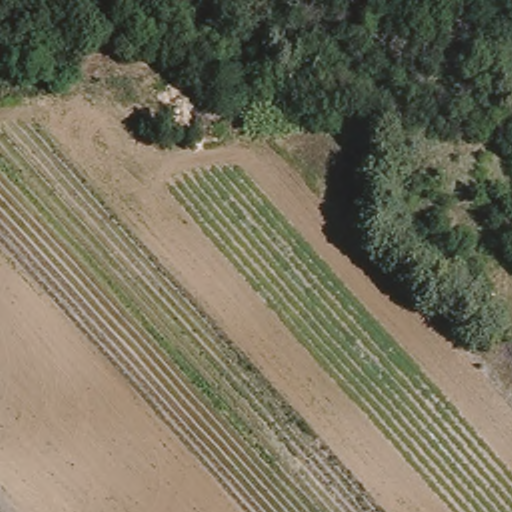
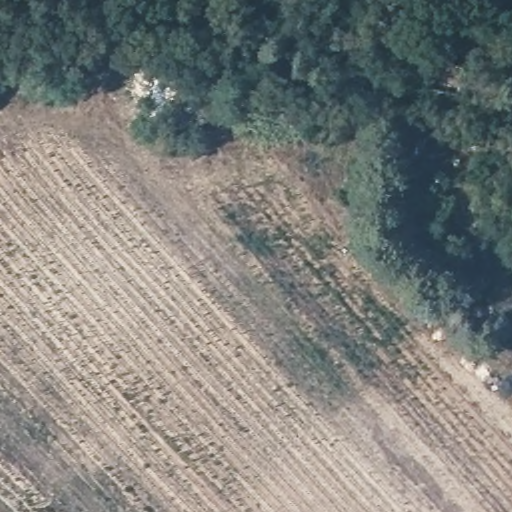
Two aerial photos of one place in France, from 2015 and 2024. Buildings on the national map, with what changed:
unchanged [(465,61),(460,94),(430,90),(434,57),(465,61)]

